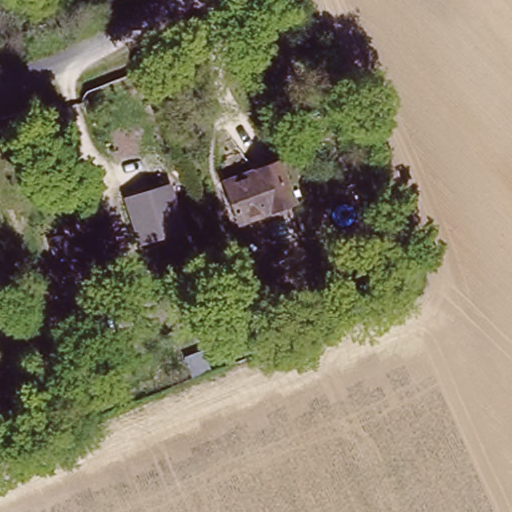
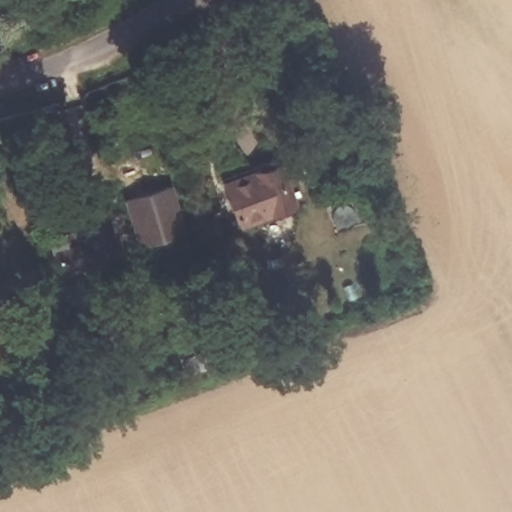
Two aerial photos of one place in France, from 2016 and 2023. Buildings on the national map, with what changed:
unchanged [(227,180),(281,160),(297,206),(243,225),(227,180)]
unchanged [(123,199),(173,183),(187,232),(139,247),(123,199)]
unchanged [(54,280),(45,255),(83,243),(81,239),(96,235),(106,263),(54,280)]

